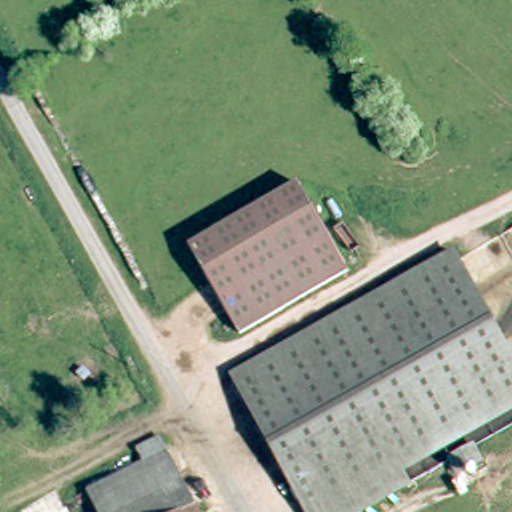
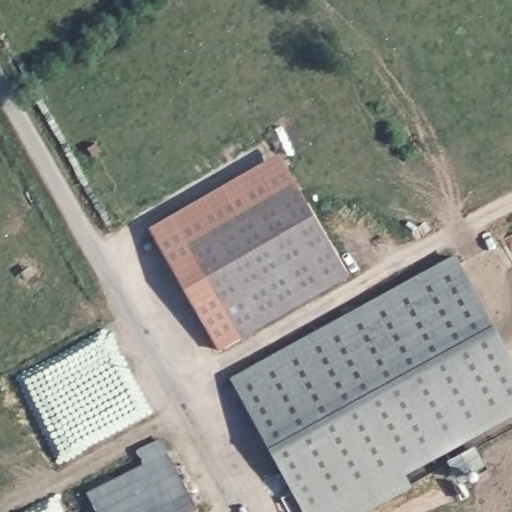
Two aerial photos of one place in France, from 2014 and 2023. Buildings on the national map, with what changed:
new [(194,246),(242,335),(218,348),(149,226),(280,151),(305,189),(194,246)]
unchanged [(194,246),(305,189),(351,278),(242,335),(194,246)]
unchanged [(454,256),(512,361),(512,418),(405,475),(411,491),(370,512),(304,512),(233,377),(454,256)]
unchanged [(98,512),(91,498),(148,466),(142,455),(140,453),(162,443),(165,448),(200,512),(98,512)]

